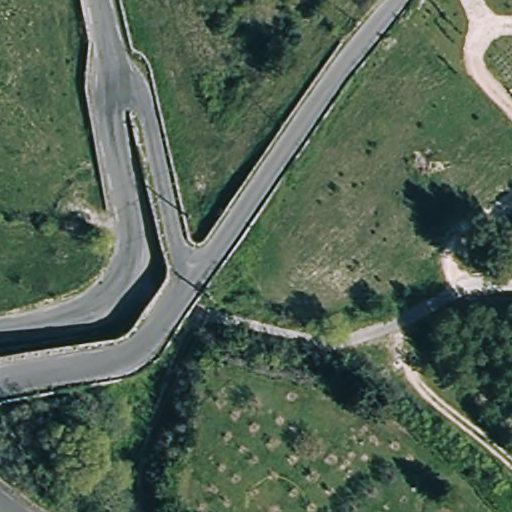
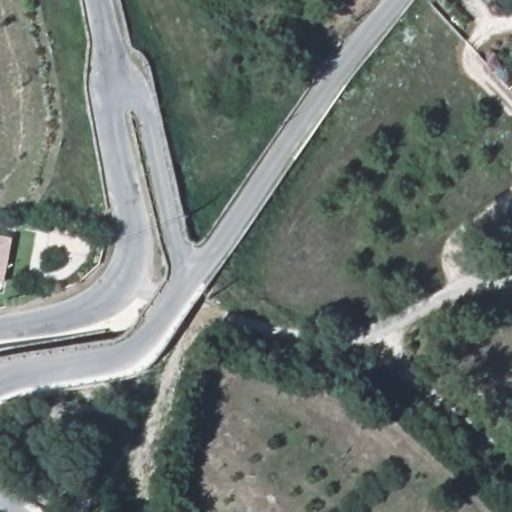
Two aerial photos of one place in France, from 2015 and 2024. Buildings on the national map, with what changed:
new [(4,288),(0,287),(0,242),(13,245),(4,288)]

